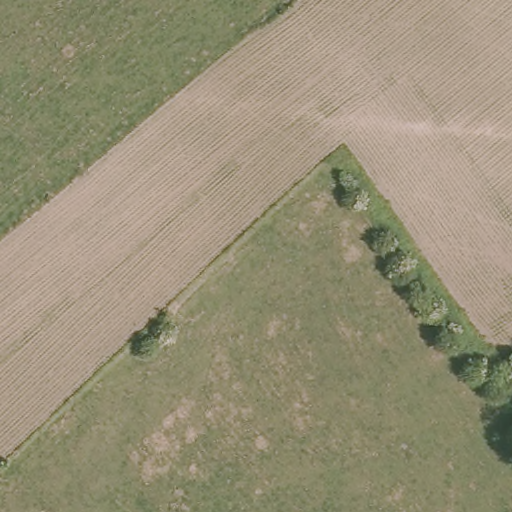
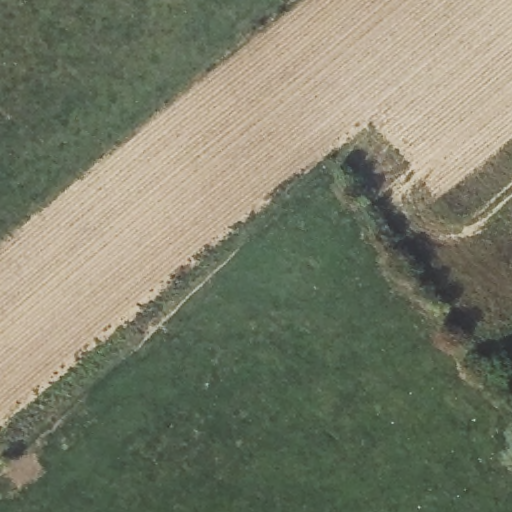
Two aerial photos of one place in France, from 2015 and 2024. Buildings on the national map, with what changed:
[]

